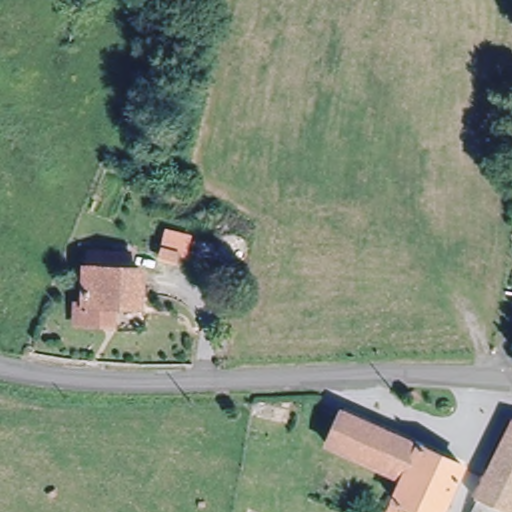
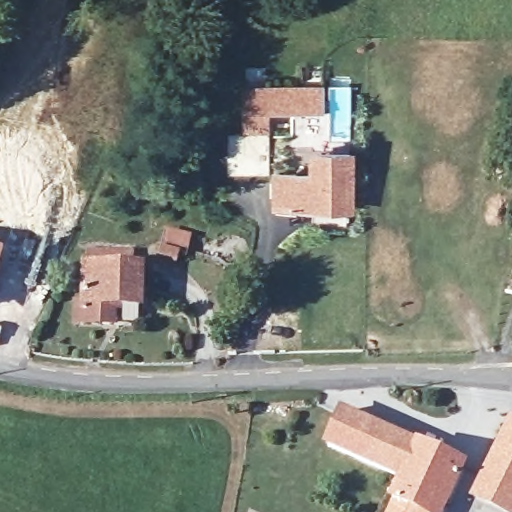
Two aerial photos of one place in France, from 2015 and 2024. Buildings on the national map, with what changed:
new [(324,111),(268,111),(268,141),(242,141),(242,85),(322,85),(324,111)]
new [(242,141),(268,141),(269,175),(228,176),(227,134),(242,134),(242,141)]
new [(354,147),(354,208),(272,209),(272,171),(309,170),(310,149),(354,147)]
new [(0,270),(0,251),(5,252),(0,270)]
unchanged [(76,305),(84,305),(84,268),(86,268),(88,252),(130,254),(129,270),(143,271),(142,305),(116,305),(115,322),(84,322),(76,322),(76,305)]
unchanged [(421,512),(419,511),(419,512),(384,512),(404,470),(327,435),(342,402),(463,456),(439,509),(431,505),(427,512),(421,512)]
unchanged [(472,512),(481,495),(476,492),(512,418),(512,512),(472,512)]

